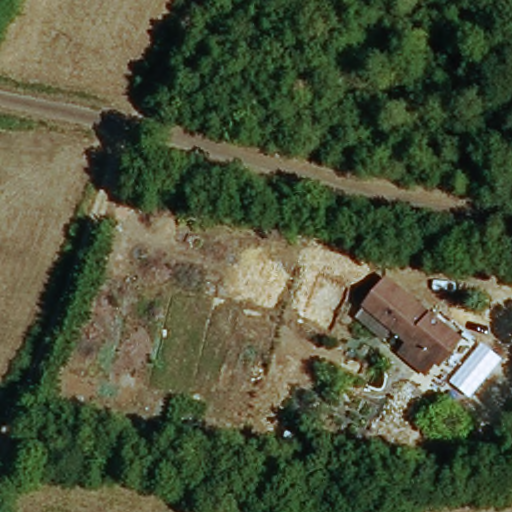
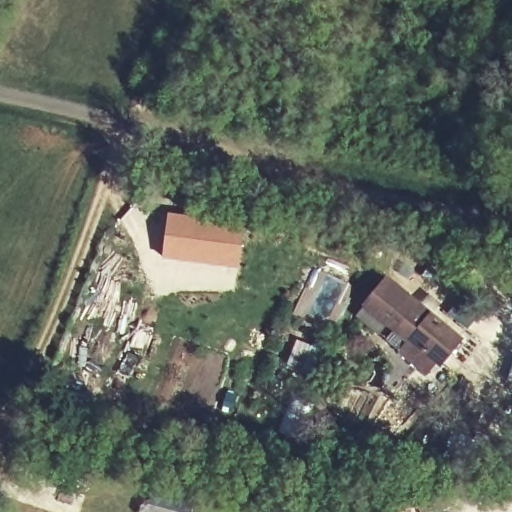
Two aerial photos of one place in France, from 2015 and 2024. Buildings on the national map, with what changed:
new [(164,257),(169,215),(217,220),(243,224),(238,266),(212,262),(183,259),(164,257)]
unchanged [(401,351),(408,339),(365,308),(381,286),(455,340),(440,362),(435,359),(427,369),(401,351)]
new [(152,482),(195,493),(190,508),(196,510),(196,512),(141,512),(137,511),(142,495),(149,497),(152,482)]
new [(413,512),(388,512),(410,505),(413,512)]

